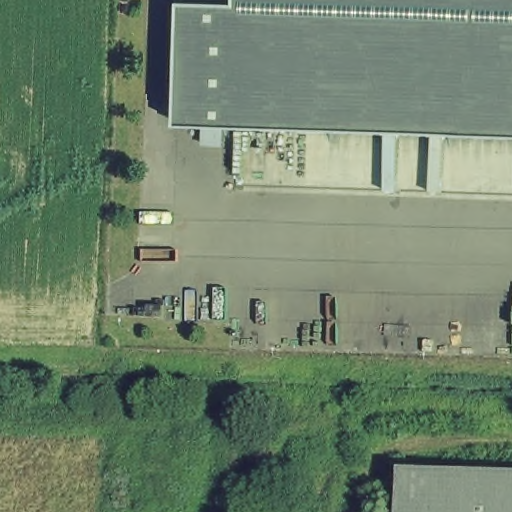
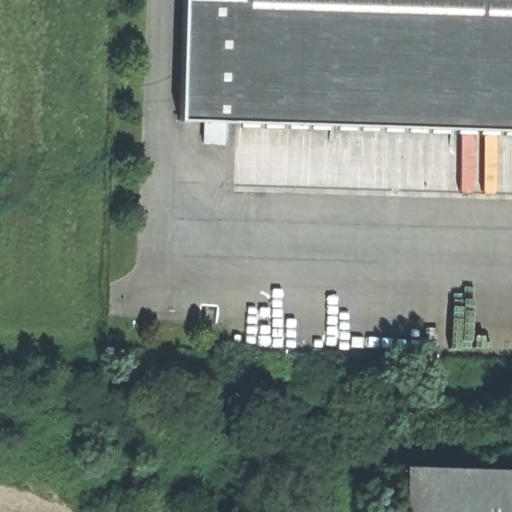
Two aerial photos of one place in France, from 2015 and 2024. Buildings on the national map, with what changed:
unchanged [(178,118),(180,0),(512,0),(512,132),(178,118)]
unchanged [(512,471),(512,512),(397,512),(399,467),(512,471)]

